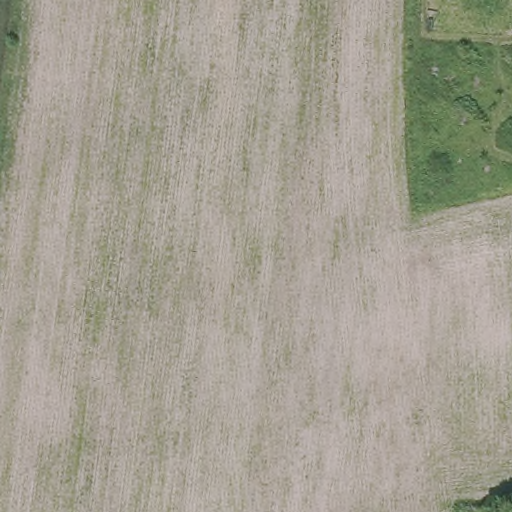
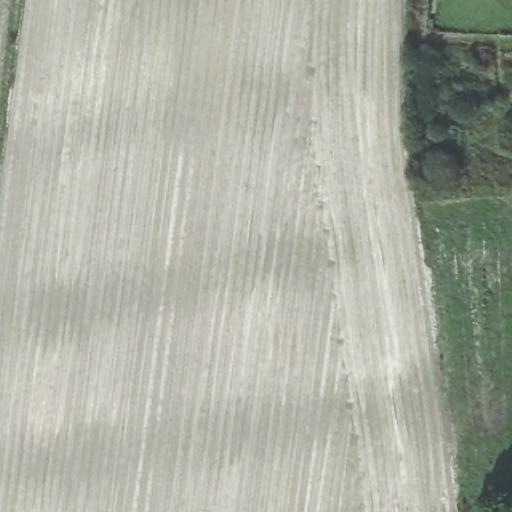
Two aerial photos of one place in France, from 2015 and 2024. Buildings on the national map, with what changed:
[]

